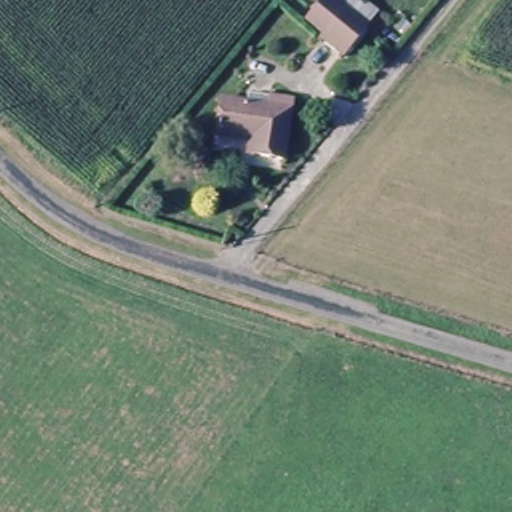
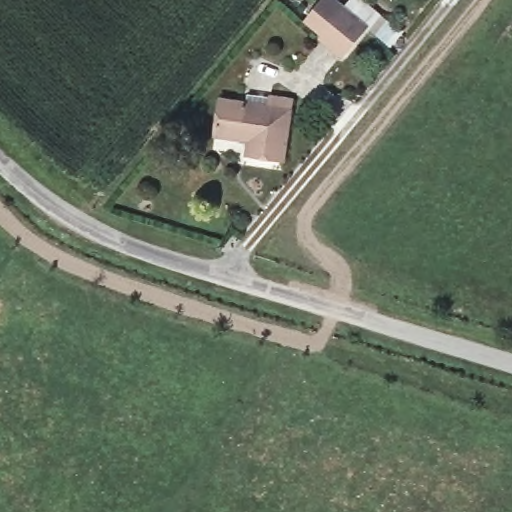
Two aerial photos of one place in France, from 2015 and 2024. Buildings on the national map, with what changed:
unchanged [(323,39),(306,28),(326,0),(336,0),(368,23),(346,54),(323,39)]
unchanged [(396,1),(420,20),(398,48),(375,29),(396,1)]
unchanged [(295,109),(285,172),(254,166),(255,151),(218,144),(224,113),(257,118),(260,106),(272,108),(272,105),(295,109)]

